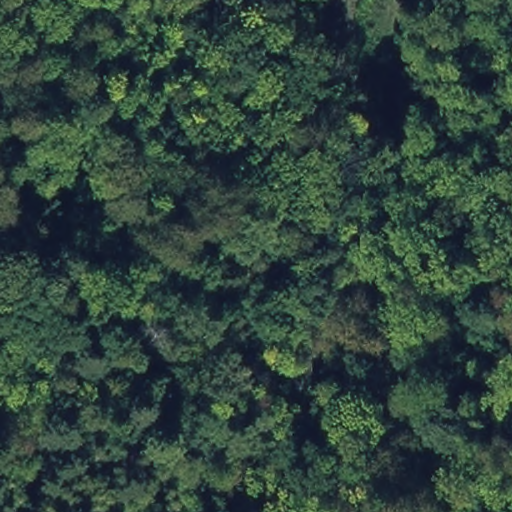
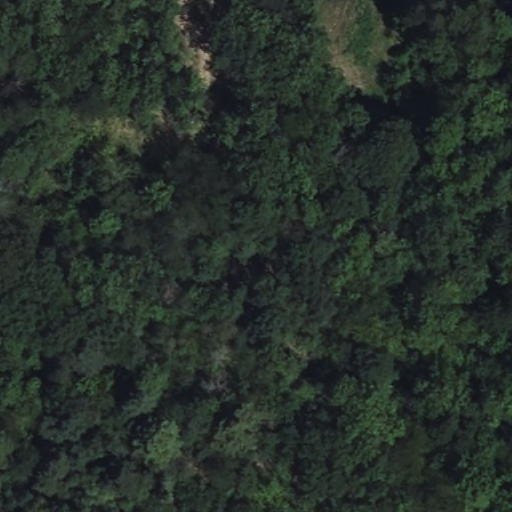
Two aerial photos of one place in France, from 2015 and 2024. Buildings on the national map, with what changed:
[]

